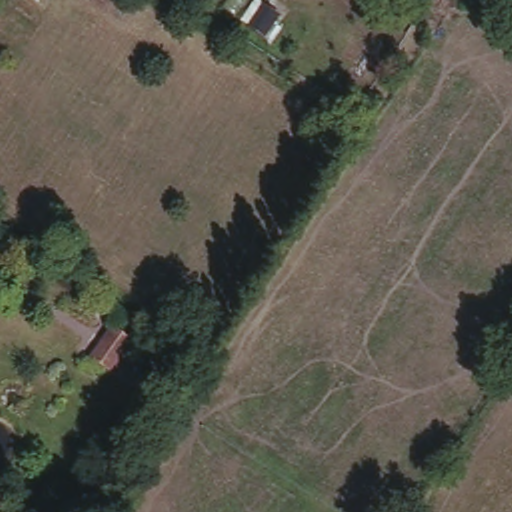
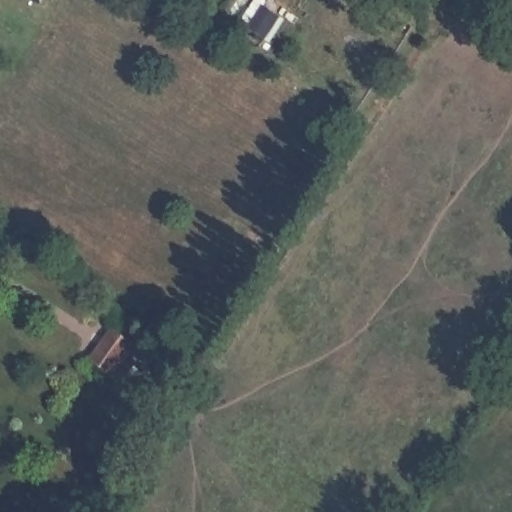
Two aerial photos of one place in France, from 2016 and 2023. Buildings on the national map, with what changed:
unchanged [(38,0),(39,0),(39,1),(38,0)]
unchanged [(86,361),(106,326),(134,342),(114,377),(86,361)]

